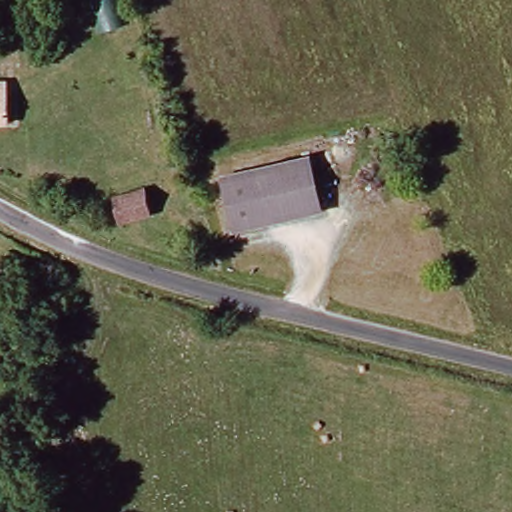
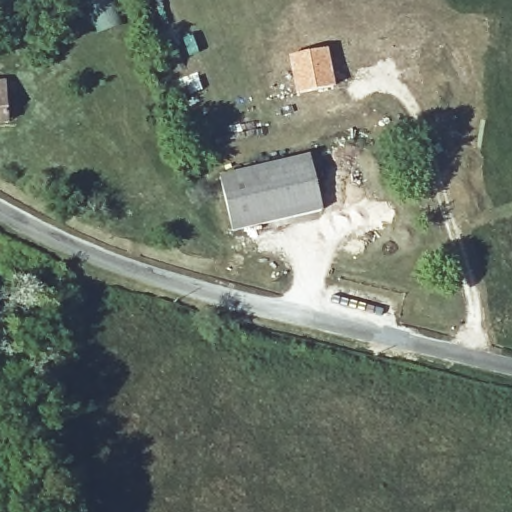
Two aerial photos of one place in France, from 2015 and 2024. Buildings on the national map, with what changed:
new [(327,48),(335,86),(295,95),(286,55),(327,48)]
unchanged [(6,124),(0,124),(0,85),(7,85),(6,124)]
unchanged [(232,230),(220,175),(310,156),(323,211),(232,230)]
unchanged [(115,220),(110,195),(143,189),(148,211),(115,220)]

